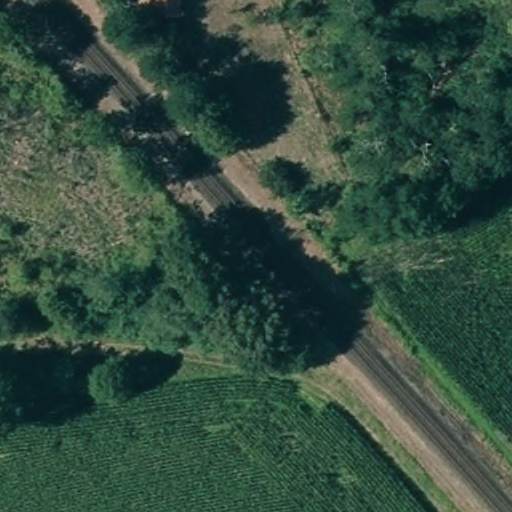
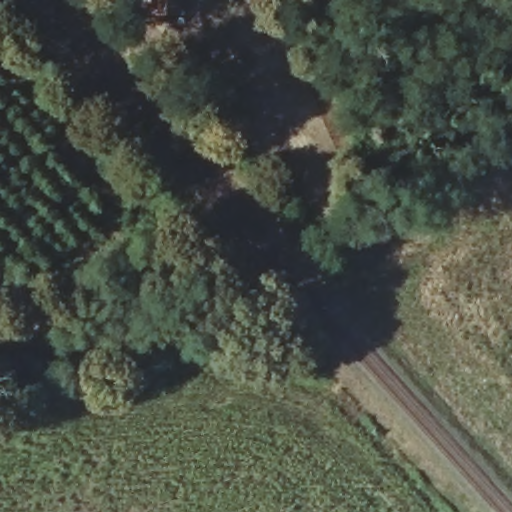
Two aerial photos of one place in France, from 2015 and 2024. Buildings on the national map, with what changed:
unchanged [(157,0),(182,0),(182,4),(157,6),(157,0)]

